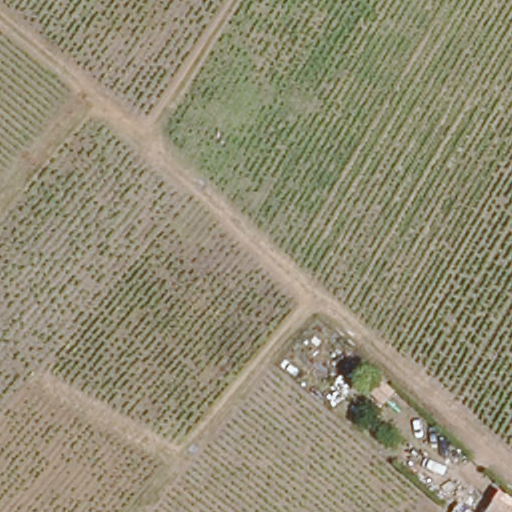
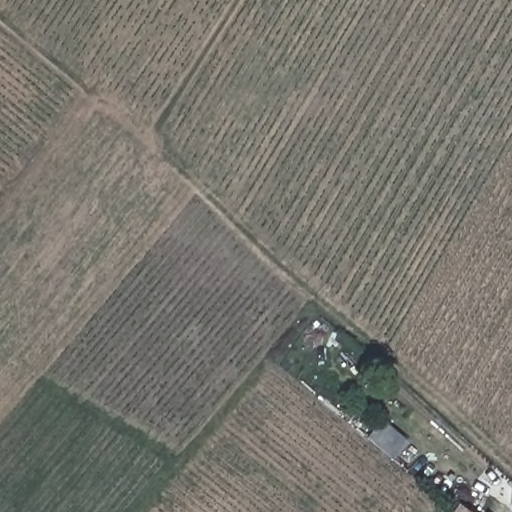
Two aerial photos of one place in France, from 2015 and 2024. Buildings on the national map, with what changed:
unchanged [(457,504),(468,512),(451,512),(457,504)]

